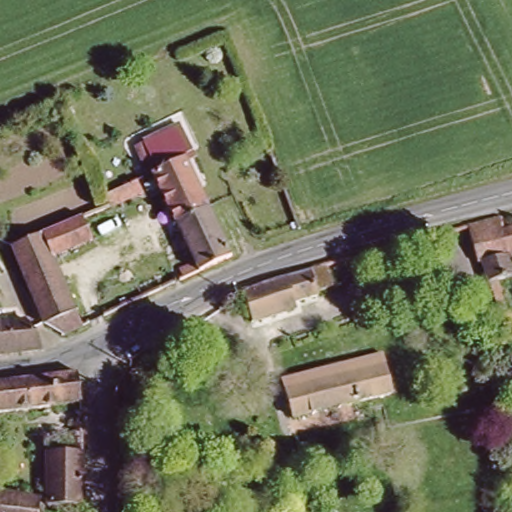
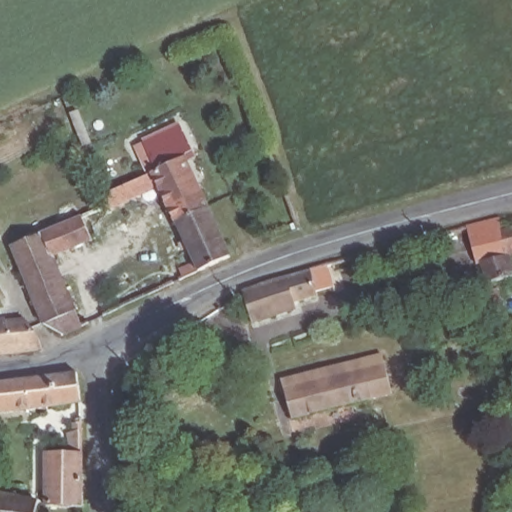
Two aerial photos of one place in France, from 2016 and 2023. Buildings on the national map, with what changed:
unchanged [(152,174),(147,176),(134,147),(140,144),(139,140),(178,122),(192,154),(152,174)]
unchanged [(187,160),(233,253),(203,267),(158,174),(187,160)]
unchanged [(13,249),(87,214),(98,237),(52,259),(85,328),(67,337),(50,328),(11,250),(13,249)]
unchanged [(493,285),(502,312),(494,313),(489,296),(482,271),(480,262),(476,263),(472,248),(466,227),(499,218),(501,230),(512,226),(512,253),(506,255),(505,255),(512,276),(512,278),(493,285)]
unchanged [(285,279),(307,272),(306,268),(325,265),(330,287),(315,291),(316,296),(292,302),(293,310),(249,324),(240,293),(285,279)]
unchanged [(35,331),(42,339),(45,352),(0,357),(0,323),(28,321),(35,331)]
unchanged [(286,391),(282,380),(312,373),(339,367),(378,356),(385,354),(395,391),(388,393),(293,417),(286,391)]
unchanged [(85,370),(90,400),(40,407),(36,376),(85,370)]
unchanged [(0,404),(0,382),(36,376),(40,407),(3,412),(4,420),(0,420),(0,407),(0,404)]
unchanged [(69,456),(69,435),(75,433),(76,425),(85,421),(87,512),(52,509),(51,457),(69,456)]
unchanged [(0,492),(5,492),(5,500),(17,500),(17,497),(23,497),(23,501),(43,503),(43,508),(43,512),(0,512),(0,492)]

